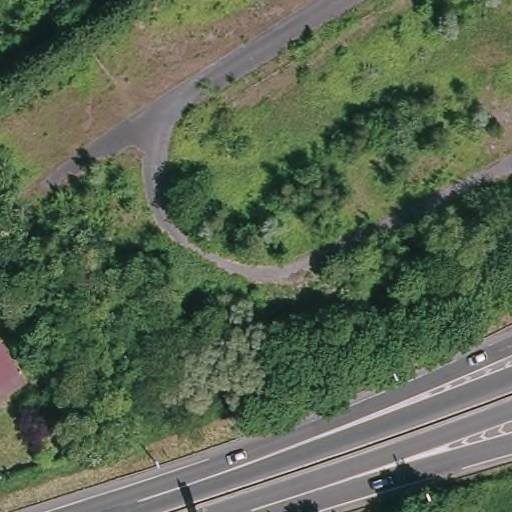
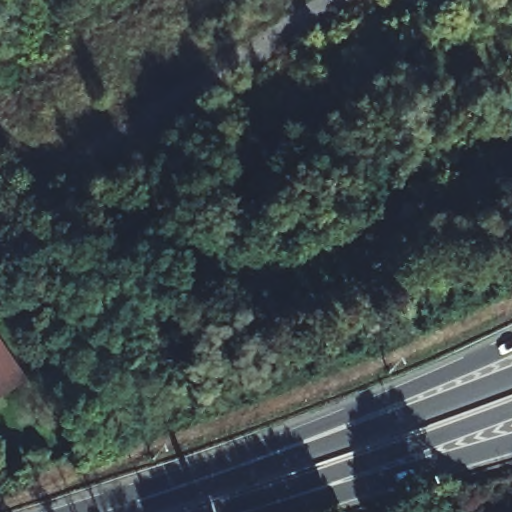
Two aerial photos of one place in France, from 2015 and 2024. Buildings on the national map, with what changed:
unchanged [(27,378),(0,395),(0,342),(27,378)]

